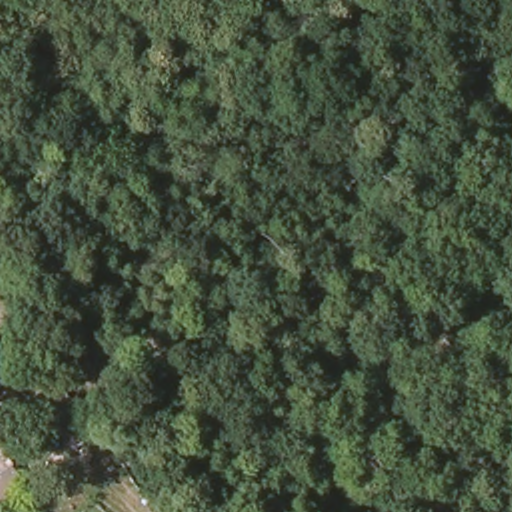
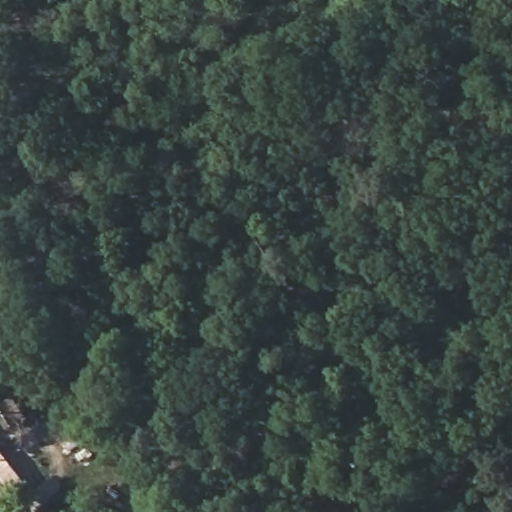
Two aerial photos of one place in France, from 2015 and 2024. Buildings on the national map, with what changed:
unchanged [(0,497),(3,501),(0,504),(0,497)]

